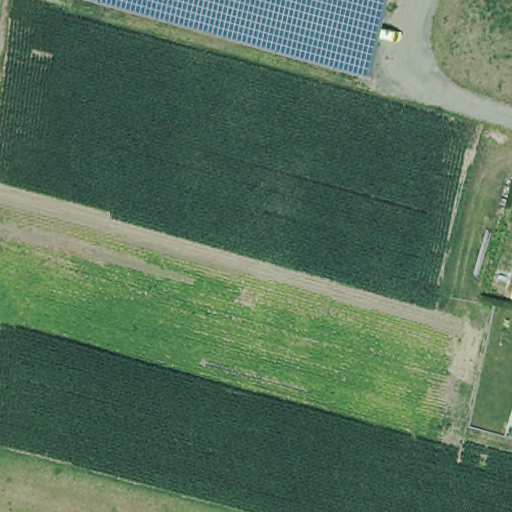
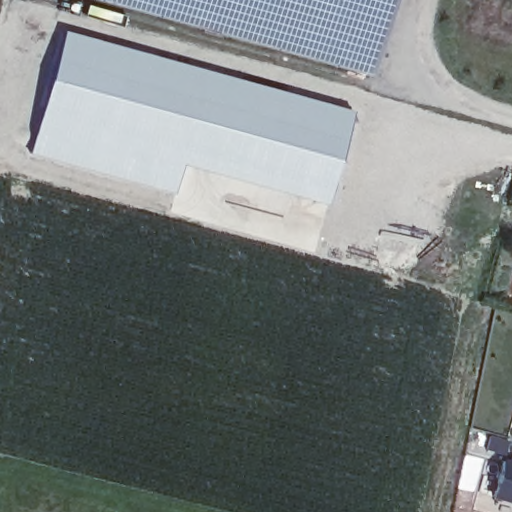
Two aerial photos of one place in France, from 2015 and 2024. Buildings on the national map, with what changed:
unchanged [(395,0),(375,75),(101,0),(395,0)]
new [(175,193),(33,151),(69,29),(356,112),(328,203),(184,164),(175,193)]
new [(494,496),(505,455),(512,457),(512,501),(494,496)]

